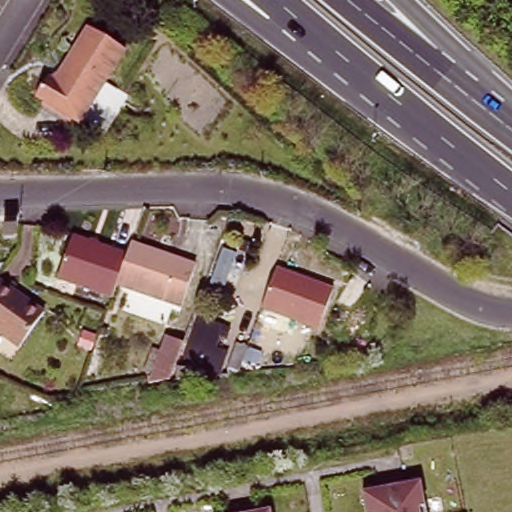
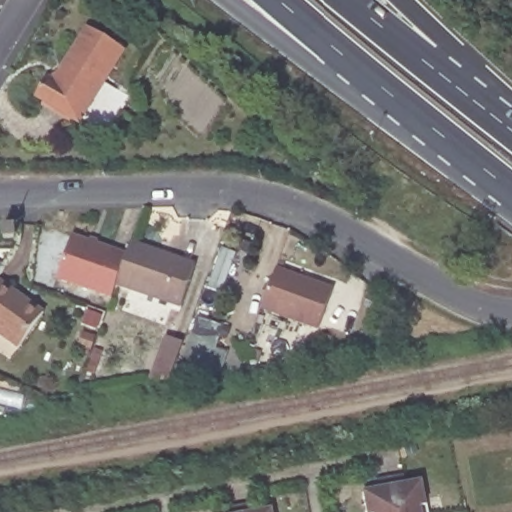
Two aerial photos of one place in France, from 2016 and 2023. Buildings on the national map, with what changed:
unchanged [(132,54),(93,130),(45,106),(54,86),(62,86),(89,33),(132,54)]
unchanged [(18,210),(11,234),(0,231),(0,219),(2,211),(7,211),(18,210)]
unchanged [(130,253),(120,287),(116,298),(62,279),(75,237),(130,253)]
unchanged [(200,264),(186,308),(120,287),(130,253),(134,244),(200,264)]
unchanged [(335,286),(319,329),(262,309),(279,266),(335,286)]
unchanged [(17,349),(0,336),(0,290),(39,321),(17,349)]
unchanged [(217,347),(232,351),(237,342),(263,352),(257,366),(244,361),(238,378),(184,358),(198,316),(223,325),(217,347)]
unchanged [(167,388),(147,391),(163,344),(181,350),(167,388)]
unchanged [(416,484),(420,507),(417,508),(418,512),(364,512),(360,493),(416,484)]
unchanged [(267,511),(267,512),(255,512),(267,511)]

